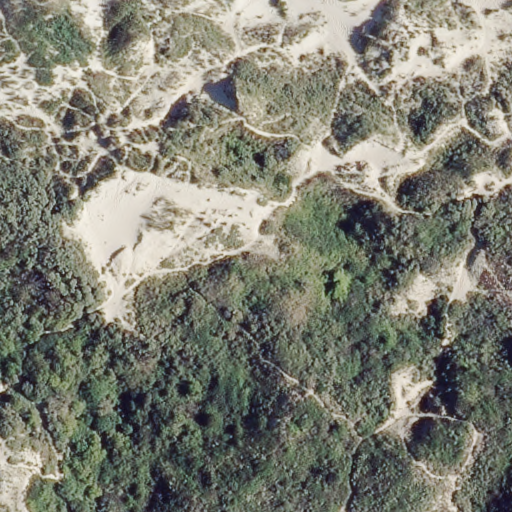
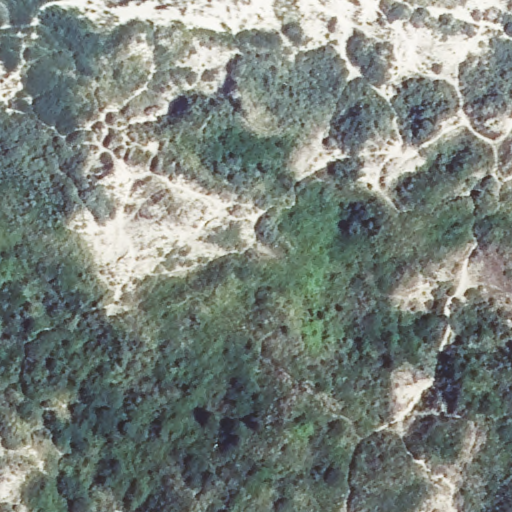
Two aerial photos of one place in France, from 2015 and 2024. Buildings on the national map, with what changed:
[]

